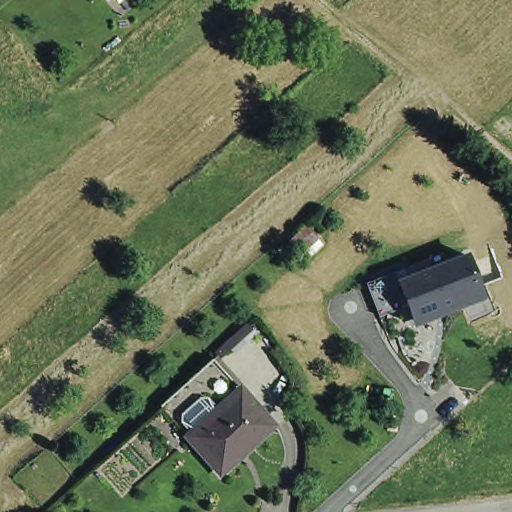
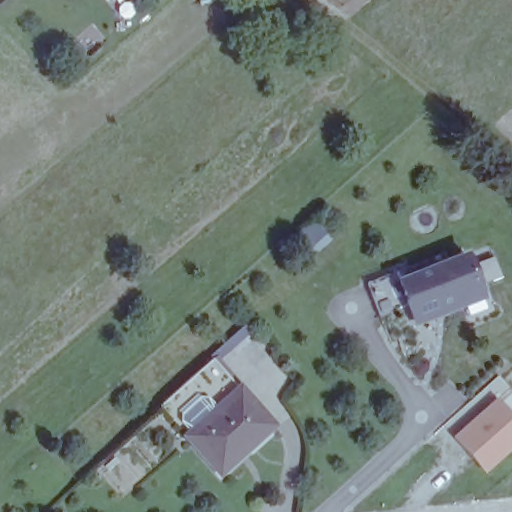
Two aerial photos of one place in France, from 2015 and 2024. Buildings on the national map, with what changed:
unchanged [(329,246),(313,259),(299,241),(314,229),(329,246)]
unchanged [(418,330),(414,310),(379,320),(369,288),(469,257),(490,305),(418,330)]
unchanged [(279,430),(227,477),(193,440),(191,437),(166,410),(219,363),(243,390),(226,405),(228,408),(246,393),(279,430)]
new [(486,385),(498,375),(509,387),(498,397),(512,413),(512,450),(484,474),(451,435),(496,395),(486,385)]
new [(449,380),(468,401),(446,417),(429,397),(449,380)]
unchanged [(31,466),(34,462),(38,466),(34,469),(31,466)]
unchanged [(49,477),(49,478),(49,479),(48,480),(48,481),(47,481),(46,481),(46,482),(45,482),(44,482),(43,482),(43,481),(42,481),(41,481),(41,480),(40,480),(40,479),(40,478),(40,477),(39,477),(40,476),(40,475),(40,474),(40,473),(41,473),(41,472),(43,472),(44,472),(45,472),(46,472),(48,472),(48,473),(49,474),(49,475),(49,476),(49,477)]
unchanged [(61,490),(61,491),(60,491),(60,492),(59,492),(59,493),(58,493),(58,494),(57,494),(56,494),(55,494),(54,493),(53,493),(53,492),(52,492),(51,491),(51,490),(51,489),(51,488),(51,487),(52,487),(52,486),(53,486),(53,485),(54,485),(55,484),(56,484),(57,484),(58,484),(58,485),(59,485),(59,486),(60,486),(60,487),(61,487),(61,488),(61,489),(61,490)]

